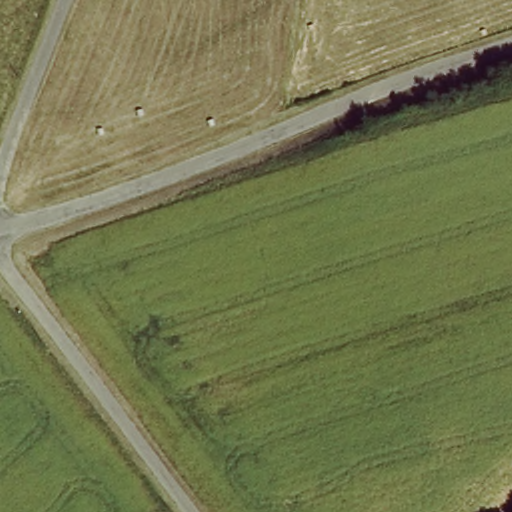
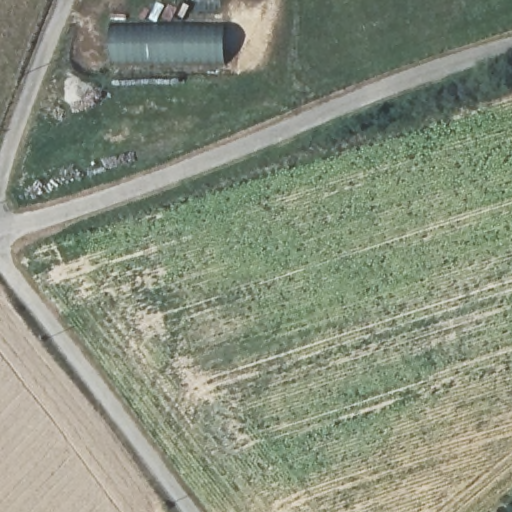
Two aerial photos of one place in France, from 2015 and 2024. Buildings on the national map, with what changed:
new [(156,24),(225,22),(224,64),(160,63),(110,64),(109,24),(156,24)]

